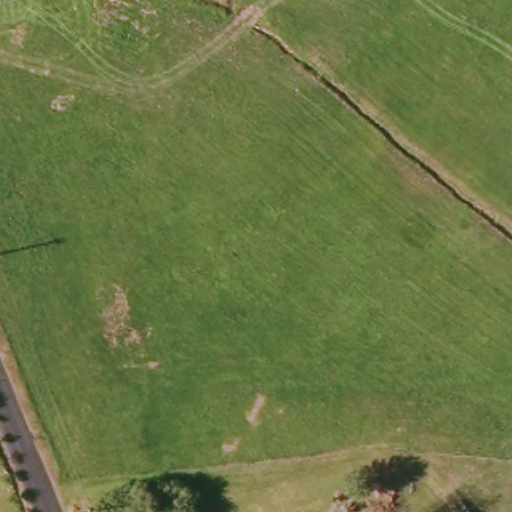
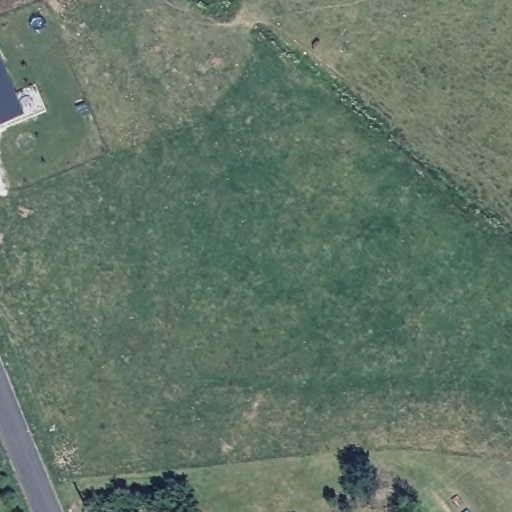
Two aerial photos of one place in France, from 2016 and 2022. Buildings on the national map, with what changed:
new [(0,53),(2,52),(25,112),(0,122),(0,53)]

